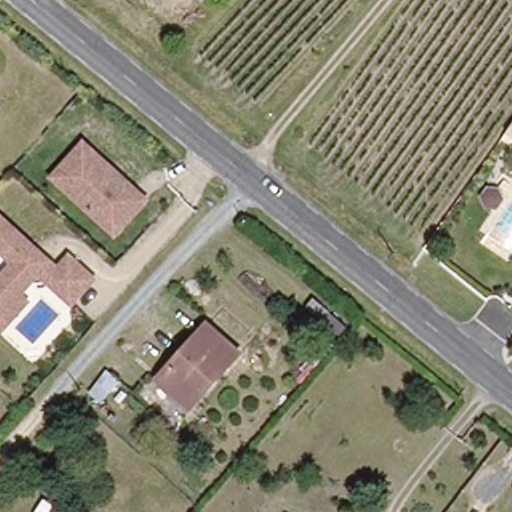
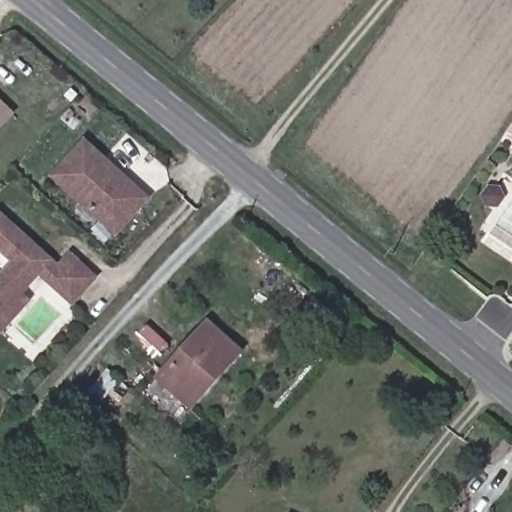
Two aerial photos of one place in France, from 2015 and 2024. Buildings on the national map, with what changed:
new [(16,113),(0,130),(0,98),(16,113)]
unchanged [(112,167),(146,198),(142,202),(116,232),(77,197),(52,175),(56,171),(83,141),(112,167)]
unchanged [(1,329),(0,329),(0,217),(33,245),(39,250),(50,259),(20,292),(28,299),(1,329)]
unchanged [(94,277),(73,301),(49,280),(70,256),(94,277)]
unchanged [(159,376),(207,321),(240,350),(192,405),(159,376)]

